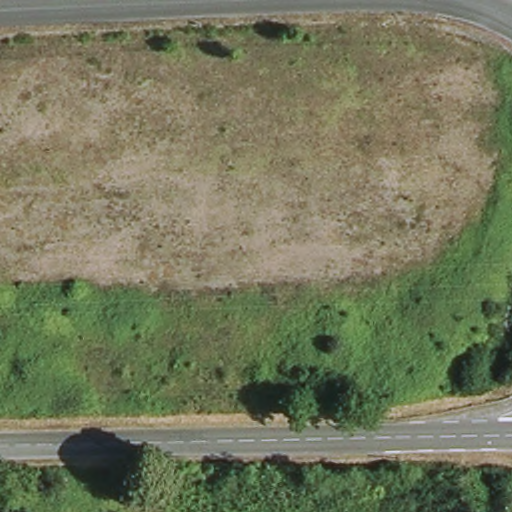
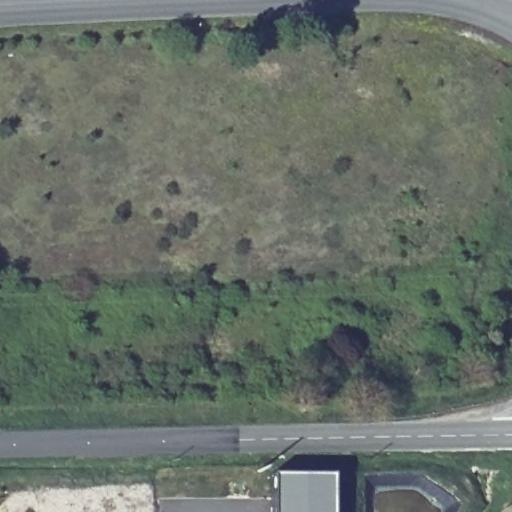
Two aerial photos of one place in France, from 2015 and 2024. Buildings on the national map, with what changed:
new [(333,477),(332,512),(272,512),(272,477),(333,477)]

